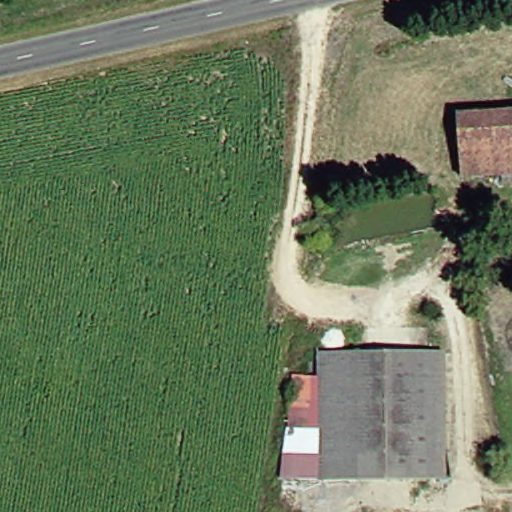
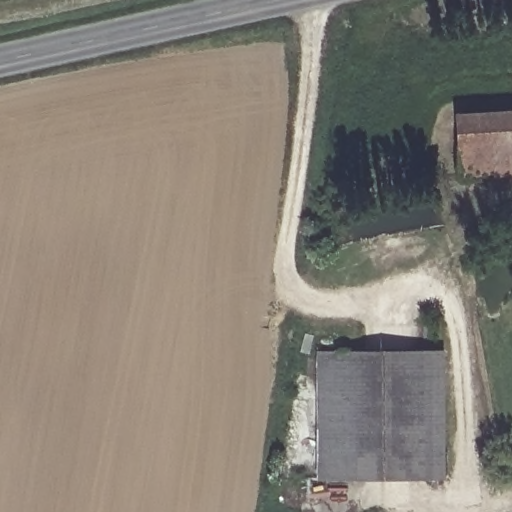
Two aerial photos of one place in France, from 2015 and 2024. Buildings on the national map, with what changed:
unchanged [(512,112),(512,168),(461,170),(455,114),(512,112)]
unchanged [(434,348),(438,477),(420,475),(417,350),(434,348)]
unchanged [(420,475),(310,478),(305,352),(417,350),(420,475)]

